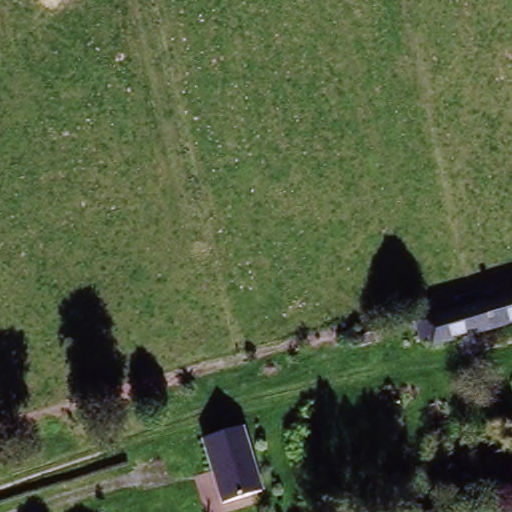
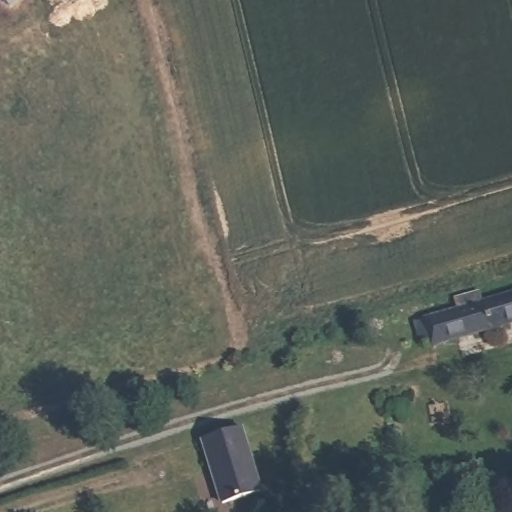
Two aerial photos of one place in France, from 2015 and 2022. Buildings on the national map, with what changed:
unchanged [(433,349),(430,336),(420,339),(413,317),(453,305),(450,296),(480,288),(483,296),(512,287),(512,325),(433,349)]
unchanged [(263,493),(222,506),(201,443),(243,428),(263,493)]

